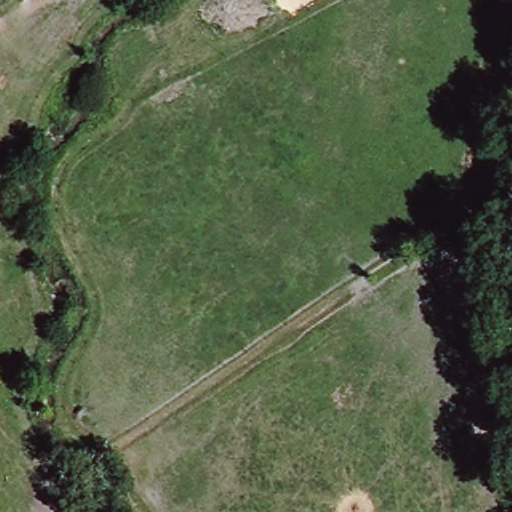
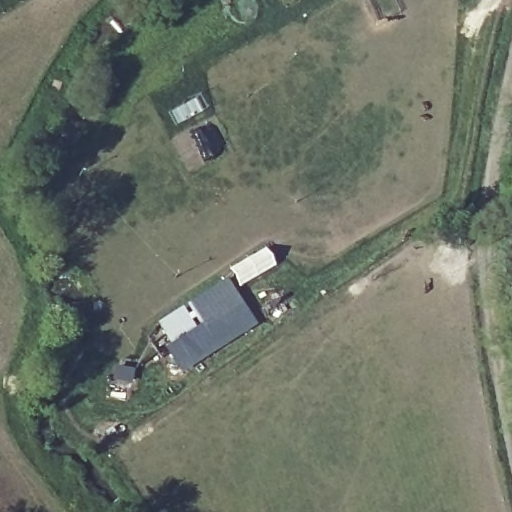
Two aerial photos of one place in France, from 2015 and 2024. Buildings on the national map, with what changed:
new [(203,324),(190,302),(226,279),(257,325),(182,373),(167,347),(203,324)]

